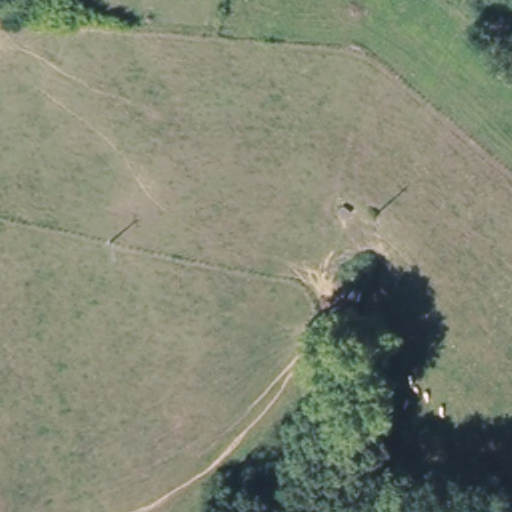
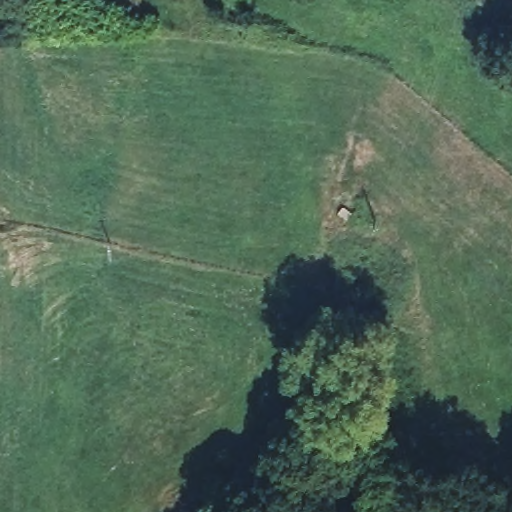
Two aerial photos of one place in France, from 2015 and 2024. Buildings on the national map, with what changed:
[]

